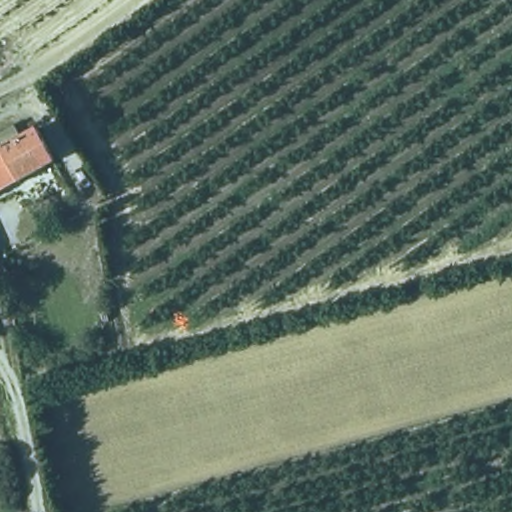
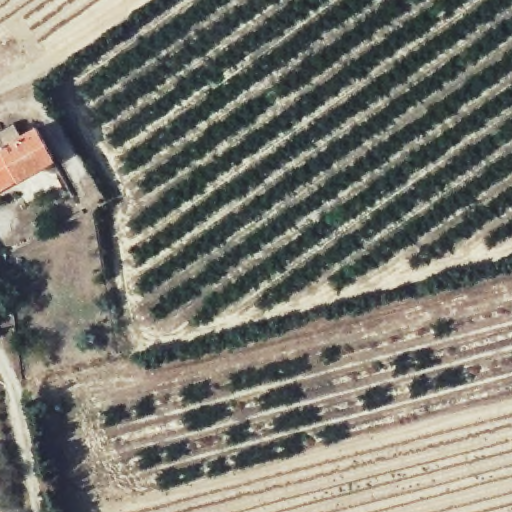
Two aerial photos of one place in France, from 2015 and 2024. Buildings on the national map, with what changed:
unchanged [(55,164),(0,193),(0,149),(36,129),(55,164)]

